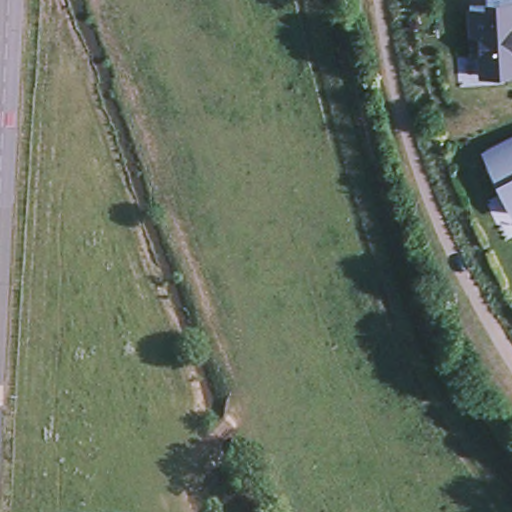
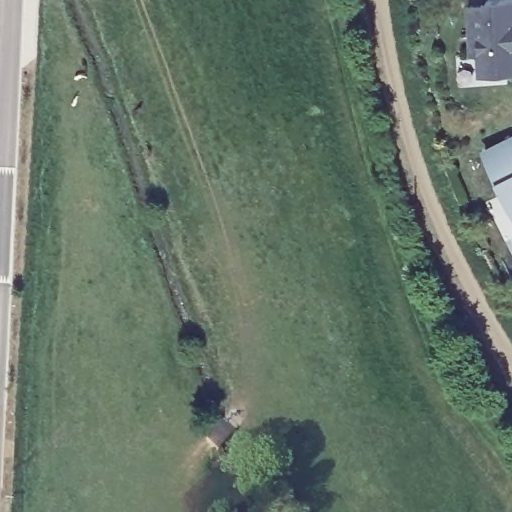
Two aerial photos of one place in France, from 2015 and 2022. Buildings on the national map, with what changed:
unchanged [(472,0),(512,0),(512,64),(509,65),(482,65),(481,45),(474,45),(472,0)]
unchanged [(512,137),(512,210),(496,175),(498,174),(486,150),(512,137)]

